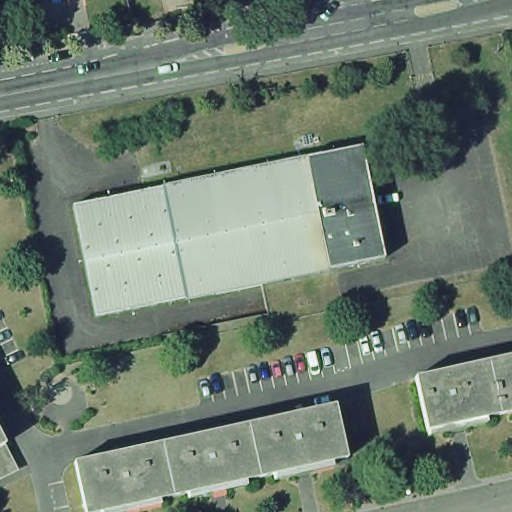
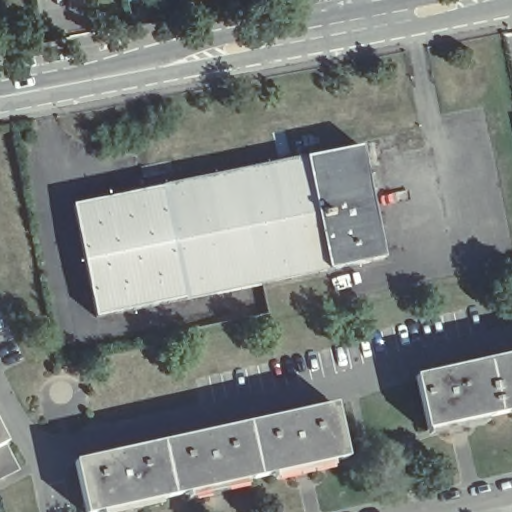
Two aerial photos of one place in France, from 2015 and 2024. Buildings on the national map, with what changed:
unchanged [(385,258),(95,317),(73,205),(361,146),(385,258)]
unchanged [(512,412),(500,415),(488,362),(512,357),(512,412)]
unchanged [(500,415),(426,431),(415,378),(488,362),(500,415)]
unchanged [(351,458),(264,477),(252,424),(339,405),(351,458)]
unchanged [(264,477),(178,496),(166,443),(252,424),(264,477)]
unchanged [(5,444),(17,469),(0,478),(0,435),(5,444)]
unchanged [(103,512),(91,512),(80,462),(166,443),(178,496),(103,512)]

